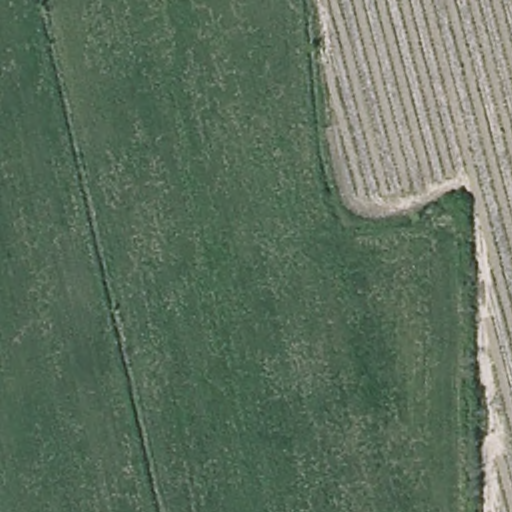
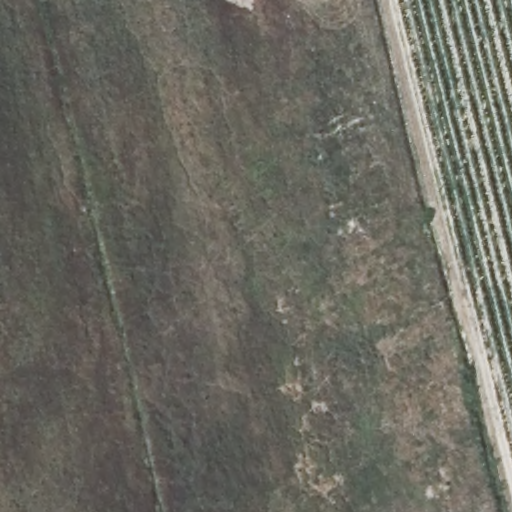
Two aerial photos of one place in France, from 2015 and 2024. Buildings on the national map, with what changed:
[]

